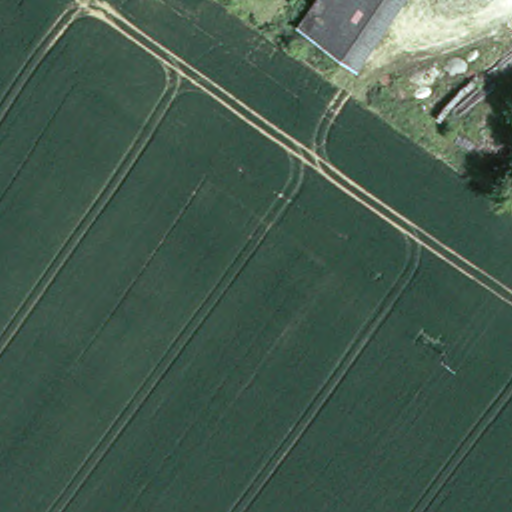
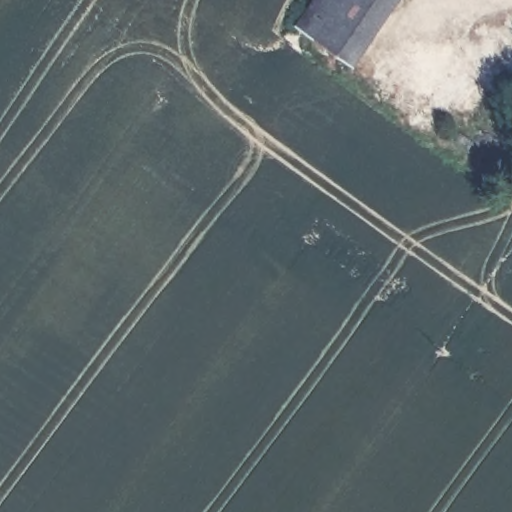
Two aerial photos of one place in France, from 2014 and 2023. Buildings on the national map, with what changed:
unchanged [(300,26),(319,0),(379,0),(339,54),(300,26)]
unchanged [(358,68),(339,54),(379,0),(406,0),(358,68)]

